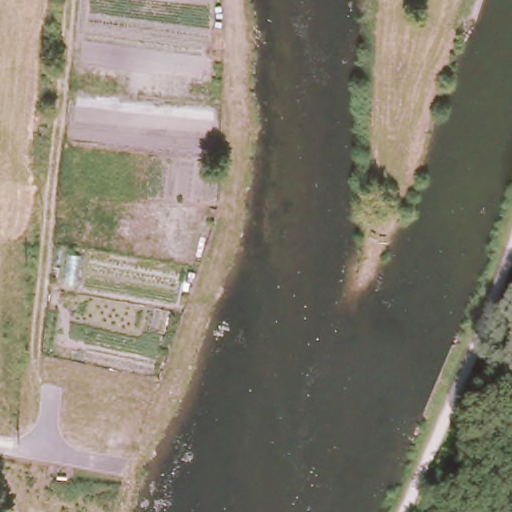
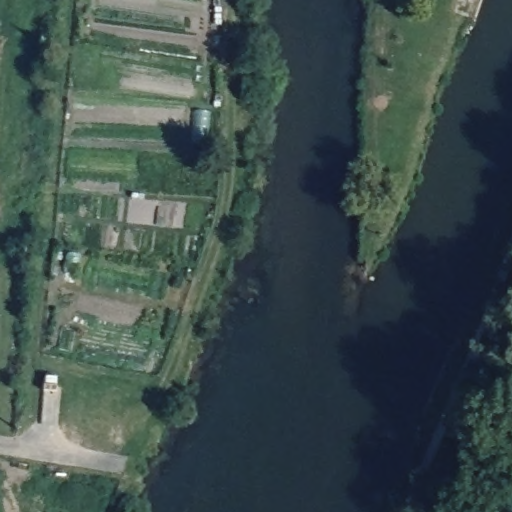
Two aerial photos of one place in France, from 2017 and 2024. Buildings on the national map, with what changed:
[]

